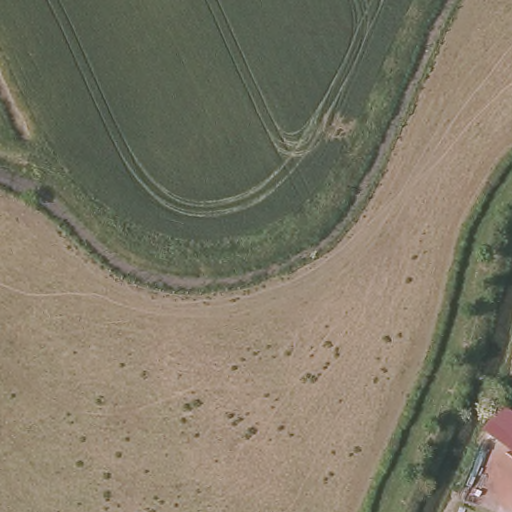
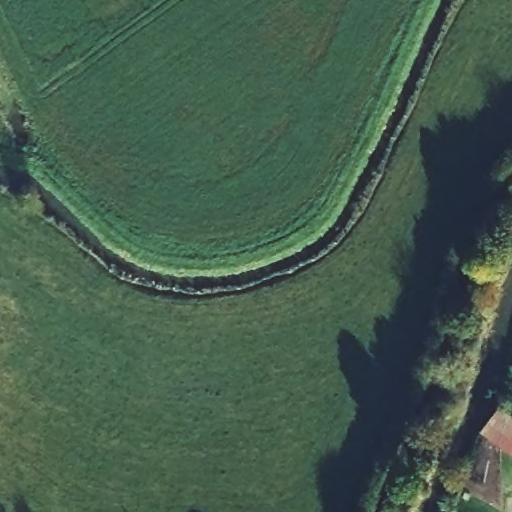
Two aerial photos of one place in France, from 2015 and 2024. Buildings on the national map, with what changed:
unchanged [(512,413),(512,454),(481,432),(500,405),(512,413)]

